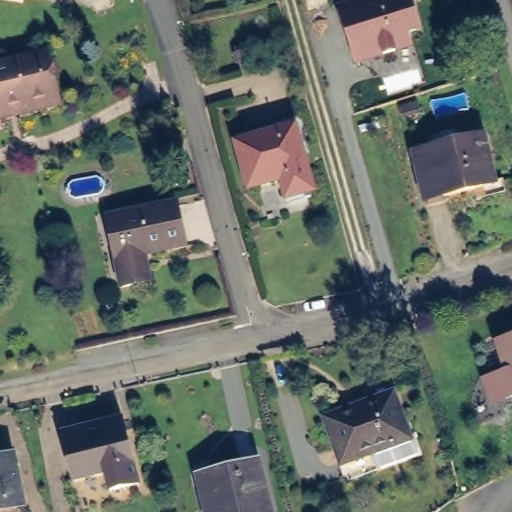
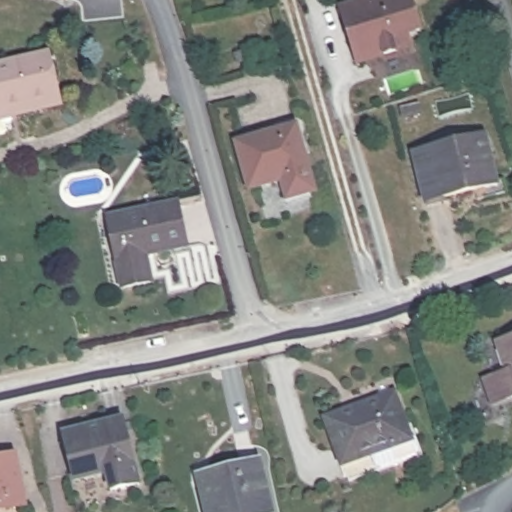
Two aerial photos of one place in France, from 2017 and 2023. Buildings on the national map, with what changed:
unchanged [(63,2),(47,0),(63,0),(63,2)]
unchanged [(421,36),(409,39),(413,52),(356,67),(336,5),(353,0),(412,0),(421,36)]
unchanged [(63,90),(0,105),(0,64),(53,51),(63,90)]
unchanged [(303,127),(321,193),(294,200),(289,181),(256,190),(244,144),(303,127)]
unchanged [(485,134),(497,180),(429,197),(418,151),(485,134)]
unchanged [(178,201),(187,244),(148,252),(152,278),(125,285),(116,243),(130,234),(126,212),(178,201)]
unchanged [(512,336),(512,386),(507,372),(498,341),(512,336)]
unchanged [(512,386),(512,402),(489,410),(478,382),(507,372),(512,386)]
unchanged [(391,397),(407,440),(341,464),(324,421),(391,397)]
unchanged [(125,416),(143,483),(115,491),(110,471),(78,480),(66,432),(125,416)]
unchanged [(26,501),(0,507),(0,461),(17,457),(26,501)]
unchanged [(278,512),(215,512),(207,480),(266,465),(278,512)]

